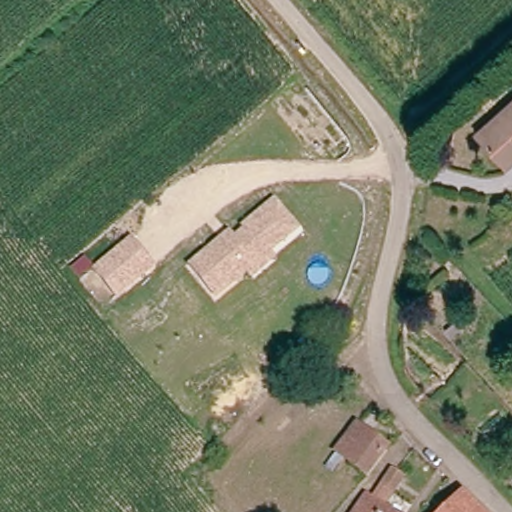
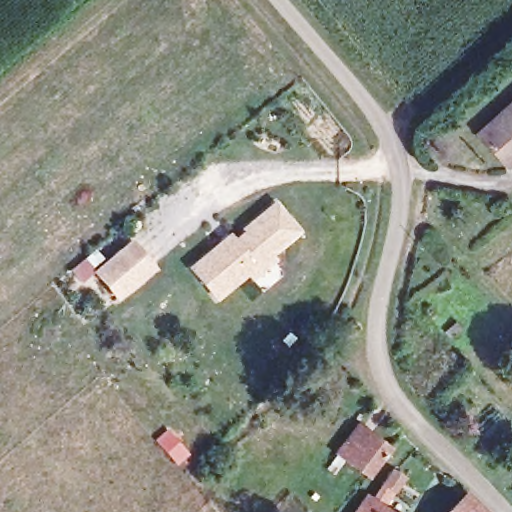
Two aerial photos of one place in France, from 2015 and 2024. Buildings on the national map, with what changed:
unchanged [(482,130),(512,103),(512,158),(510,160),(482,130)]
unchanged [(296,230),(270,253),(276,261),(252,283),(245,275),(216,299),(189,267),(228,233),(232,240),(244,232),(240,227),(272,200),(296,230)]
unchanged [(92,271),(130,241),(155,270),(115,302),(92,271)]
unchanged [(382,447),(361,475),(330,451),(351,424),(382,447)]
unchanged [(367,502),(386,472),(402,481),(381,512),(355,512),(365,500),(367,502)]
unchanged [(446,512),(462,496),(479,512),(446,512)]

